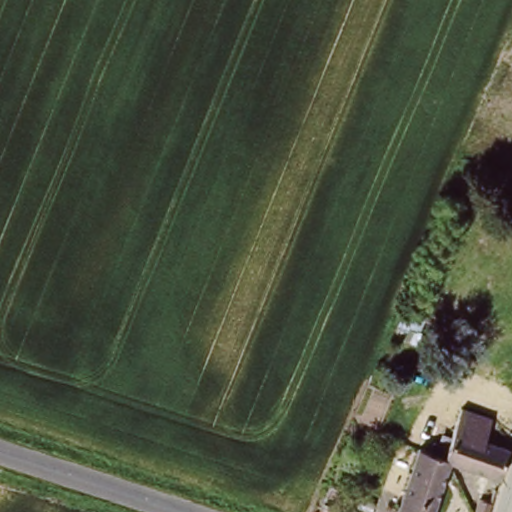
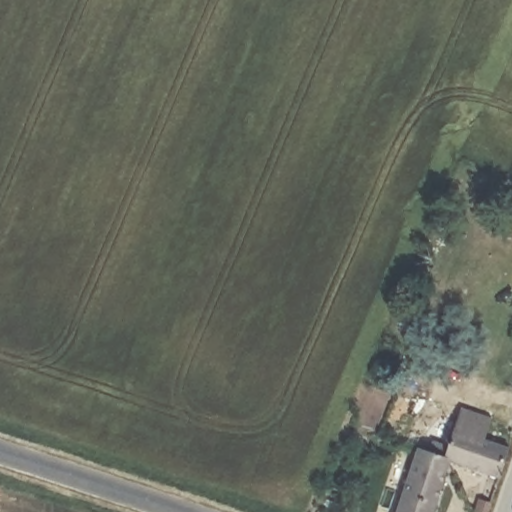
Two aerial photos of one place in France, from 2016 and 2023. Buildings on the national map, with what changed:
unchanged [(502,480),(489,512),(479,512),(476,511),(482,496),(484,497),(492,475),(449,459),(430,512),(396,512),(418,445),(445,452),(461,407),(491,417),(486,438),(510,445),(502,480)]

